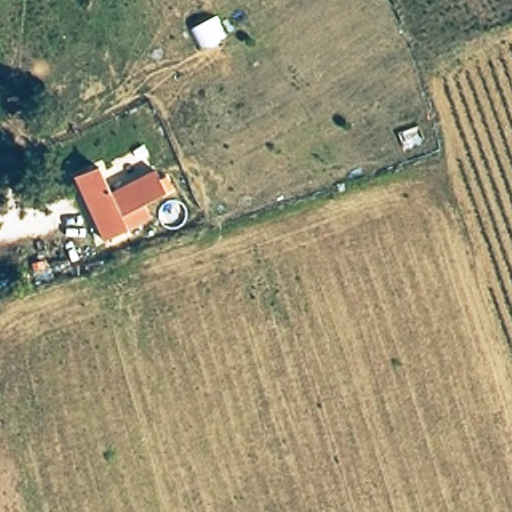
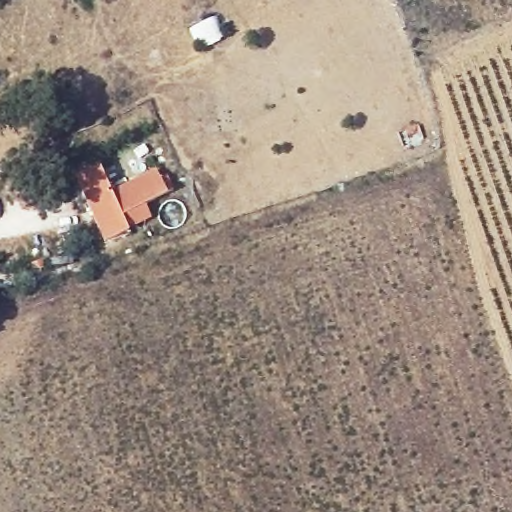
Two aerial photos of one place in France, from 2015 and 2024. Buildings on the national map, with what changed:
unchanged [(105,196),(144,180),(153,203),(115,219),(120,233),(93,245),(66,180),(93,167),(105,196)]

